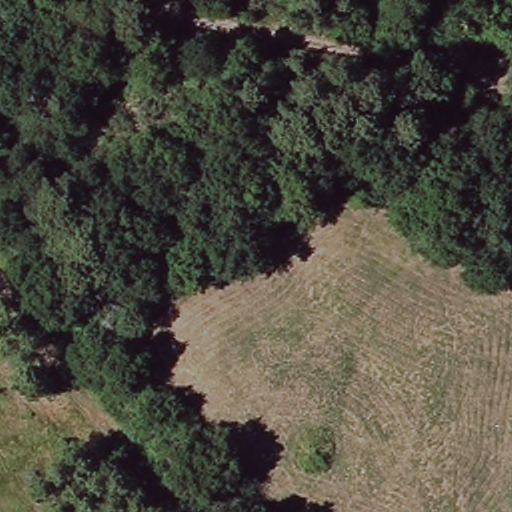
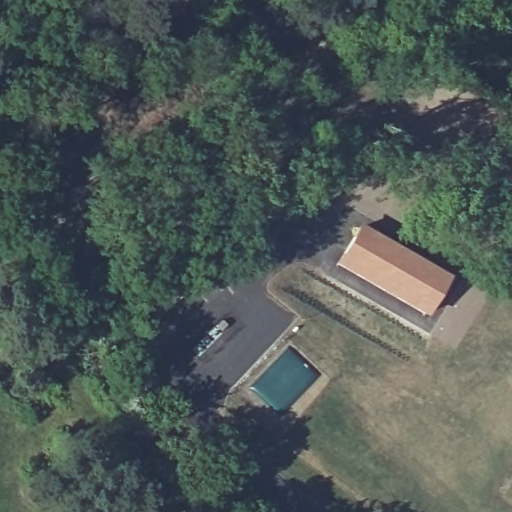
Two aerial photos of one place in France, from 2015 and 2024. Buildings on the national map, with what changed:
new [(356,227),(447,278),(425,317),(334,264),(356,227)]

